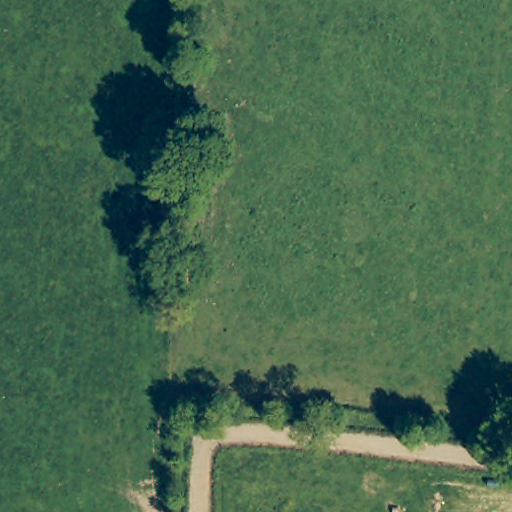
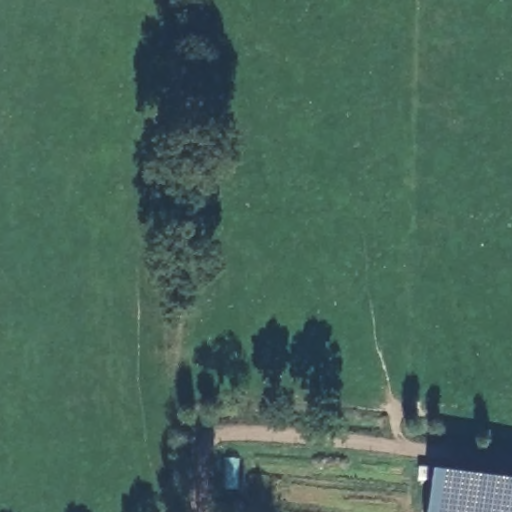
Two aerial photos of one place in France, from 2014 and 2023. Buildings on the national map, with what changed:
new [(430,466),(512,475),(512,512),(426,512),(430,466)]

